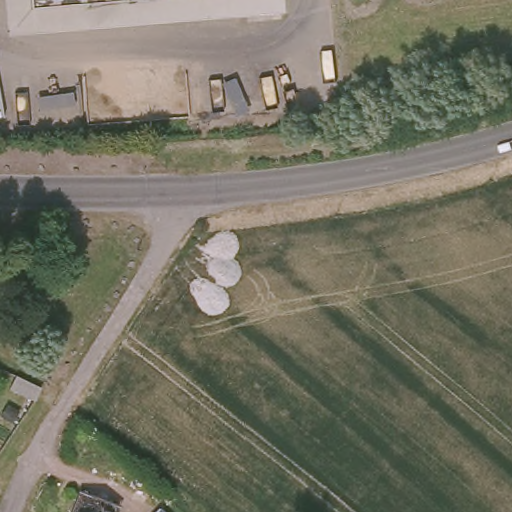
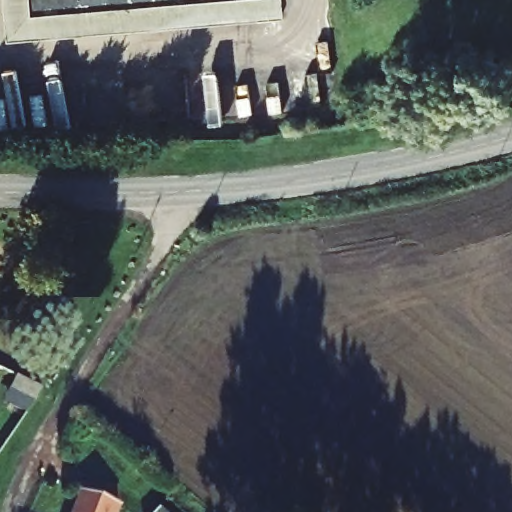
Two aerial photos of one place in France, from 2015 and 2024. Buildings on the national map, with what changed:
unchanged [(2,0),(30,0),(31,6),(3,8),(2,0)]
unchanged [(100,0),(281,0),(282,11),(5,34),(3,8),(31,6),(100,0)]
unchanged [(30,0),(100,0),(31,6),(30,0)]
unchanged [(112,507),(111,512),(66,512),(73,493),(112,507)]
unchanged [(162,505),(168,512),(156,512),(162,505)]

